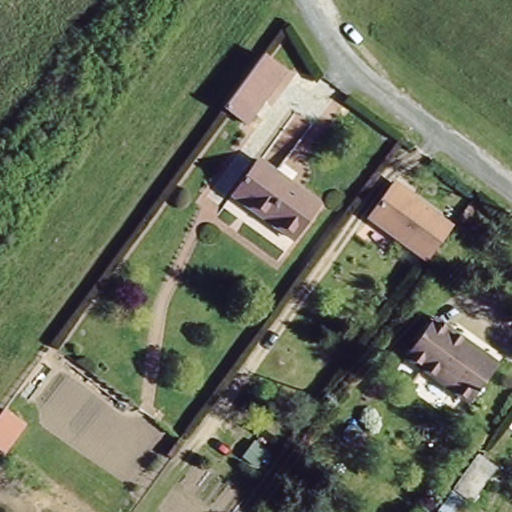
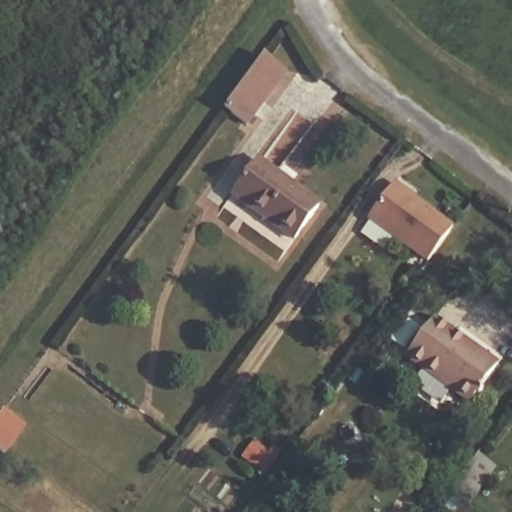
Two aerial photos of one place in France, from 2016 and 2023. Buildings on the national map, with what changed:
unchanged [(264,57),(286,74),(246,129),(223,112),(264,57)]
unchanged [(260,160),(323,207),(296,243),(233,196),(260,160)]
unchanged [(427,259),(418,252),(366,215),(392,180),(443,217),(452,224),(427,259)]
unchanged [(446,387),(428,373),(418,366),(403,355),(429,321),(432,317),(447,328),(494,362),(469,395),(465,401),(446,387)]
unchanged [(1,408),(28,426),(6,455),(0,451),(0,410),(1,408)]
unchanged [(463,512),(434,512),(477,452),(496,465),(463,512)]

